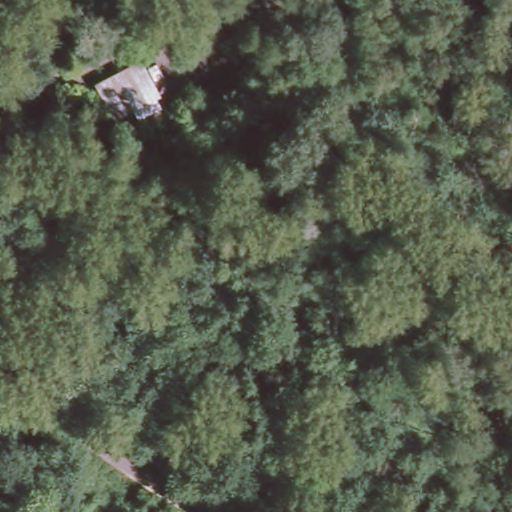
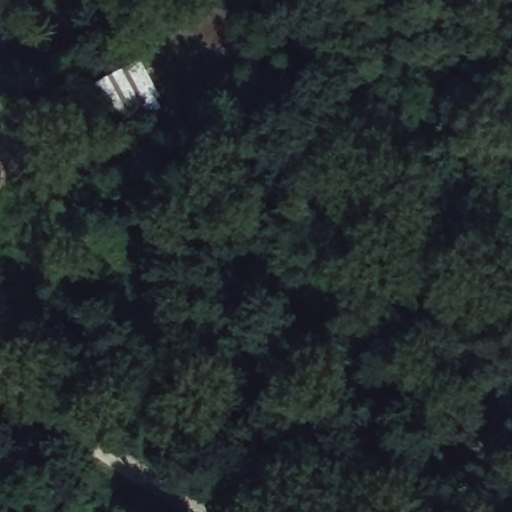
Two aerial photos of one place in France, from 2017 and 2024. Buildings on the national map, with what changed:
unchanged [(142,60),(165,108),(140,121),(135,110),(112,121),(95,85),(142,60)]

